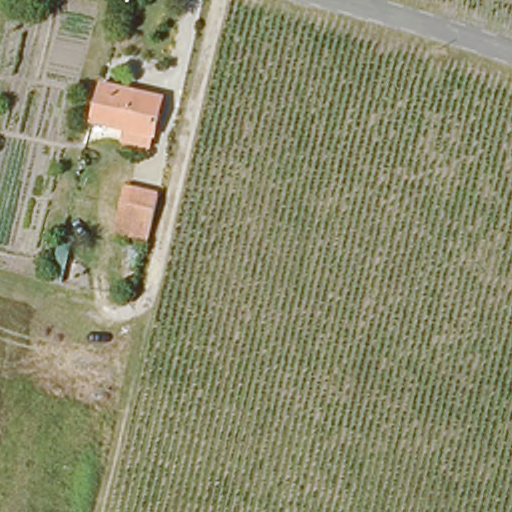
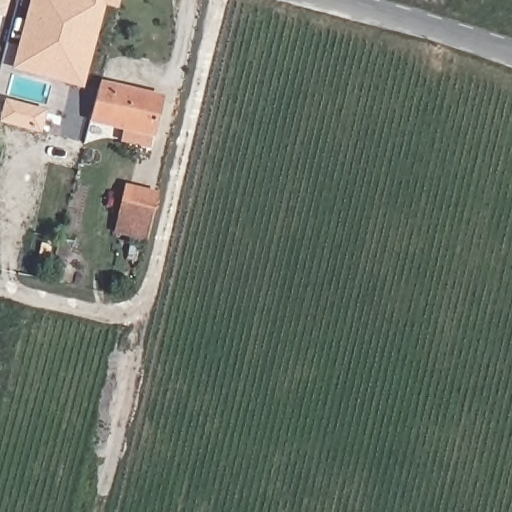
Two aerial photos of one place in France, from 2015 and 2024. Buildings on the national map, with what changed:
new [(4,17),(0,16),(0,0),(9,0),(4,17)]
new [(119,10),(106,6),(84,90),(13,70),(31,0),(122,0),(119,10)]
unchanged [(137,141),(114,135),(117,124),(92,116),(102,85),(150,96),(165,100),(157,135),(153,145),(137,141)]
new [(5,100),(49,110),(43,134),(0,123),(0,120),(5,100)]
unchanged [(149,233),(116,224),(120,207),(125,191),(158,199),(149,233)]

